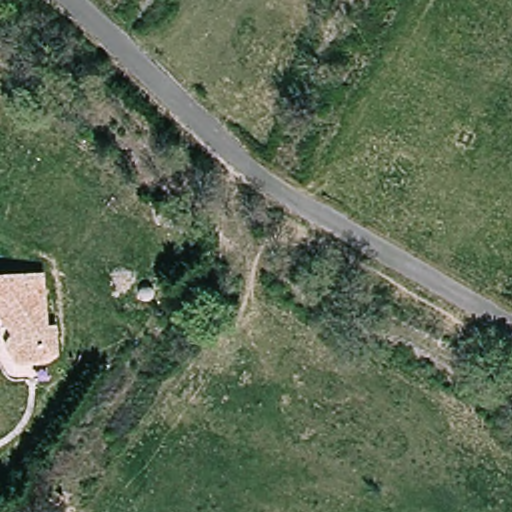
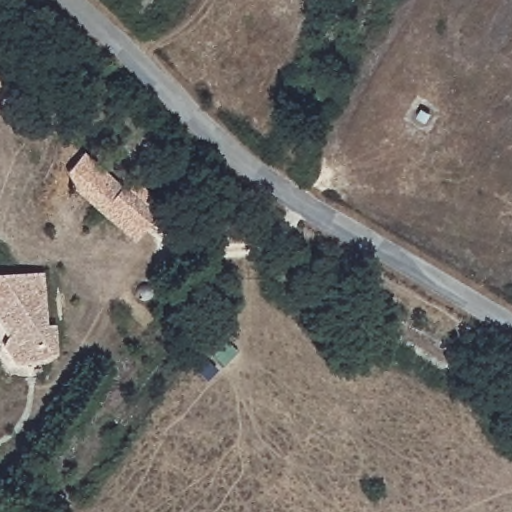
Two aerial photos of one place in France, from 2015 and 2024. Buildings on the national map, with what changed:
new [(122,185),(127,190),(135,180),(154,199),(147,207),(155,215),(134,240),(75,193),(65,171),(82,153),(122,185)]
unchanged [(39,328),(47,328),(48,358),(10,363),(0,346),(0,278),(37,276),(39,328)]

